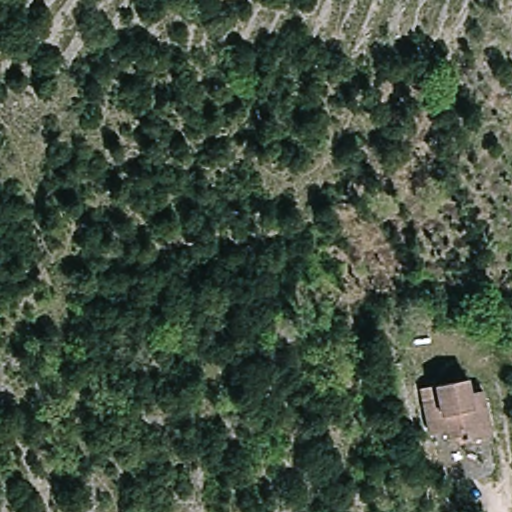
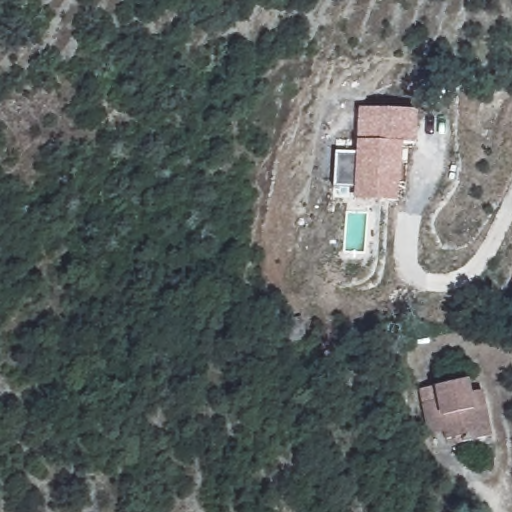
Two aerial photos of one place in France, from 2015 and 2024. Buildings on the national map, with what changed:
new [(357,154),(361,109),(418,113),(416,146),(402,145),(400,203),(355,201),(355,189),(336,188),(338,152),(357,154)]
unchanged [(482,427),(464,432),(462,425),(446,428),(445,422),(429,426),(422,393),(438,390),(435,376),(470,368),(472,382),(484,380),(494,425),(482,427)]

